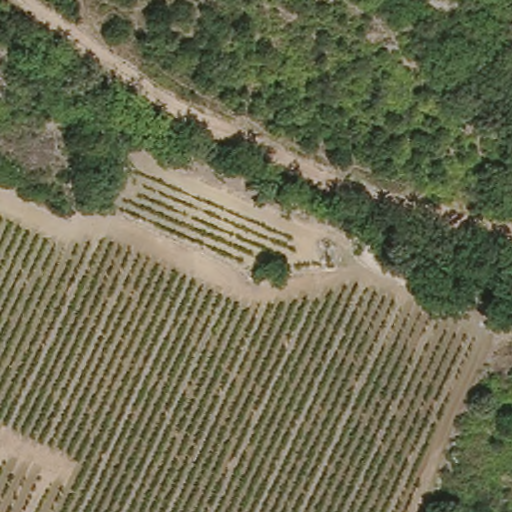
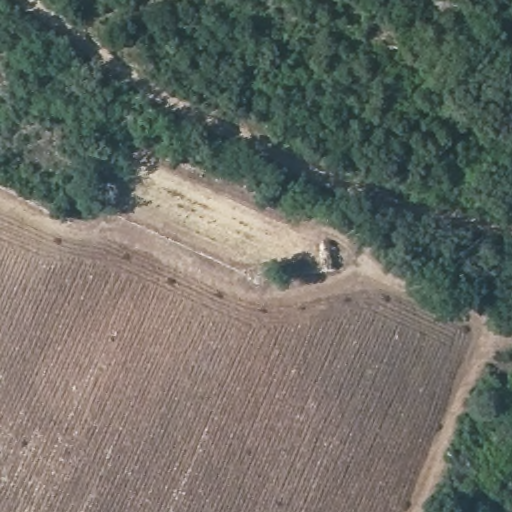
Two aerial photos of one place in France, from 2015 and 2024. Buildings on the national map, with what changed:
unchanged [(331,206),(351,214),(343,232),(324,224),(331,206)]

